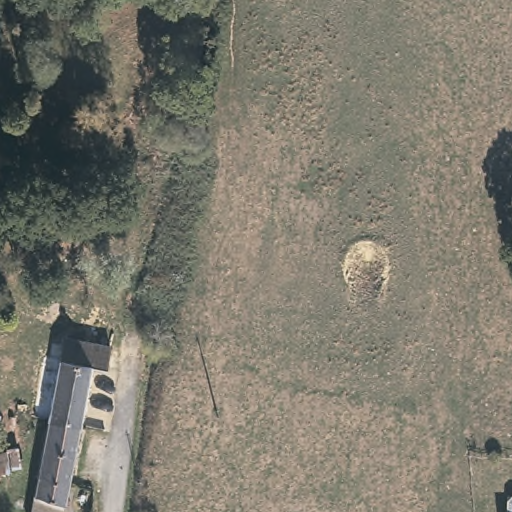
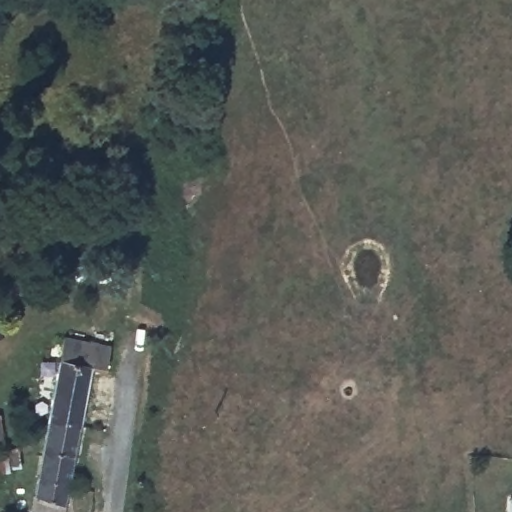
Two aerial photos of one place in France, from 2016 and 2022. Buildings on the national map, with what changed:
unchanged [(92,368),(82,420),(48,412),(61,348),(51,346),(52,339),(53,334),(106,347),(106,349),(102,369),(92,368)]
unchanged [(82,420),(75,450),(43,443),(48,412),(82,420)]
unchanged [(2,413),(6,443),(0,444),(0,413),(2,413)]
unchanged [(63,512),(29,512),(43,443),(75,450),(63,512)]

